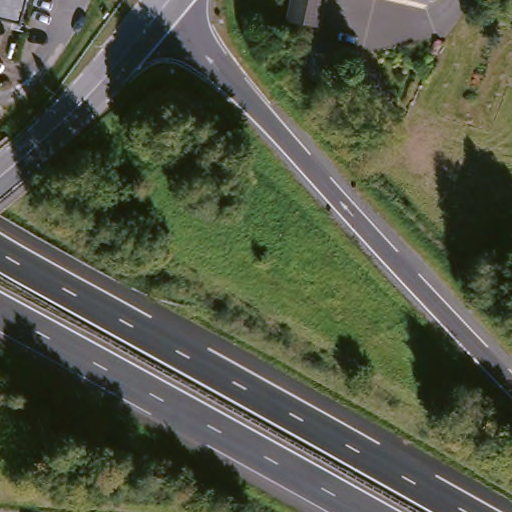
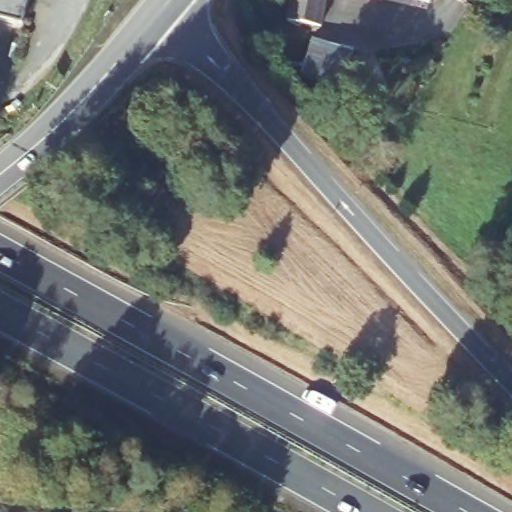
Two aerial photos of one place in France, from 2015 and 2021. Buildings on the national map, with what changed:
unchanged [(0,16),(0,0),(37,0),(31,24),(0,16)]
unchanged [(328,0),(323,27),(288,20),(295,0),(328,0)]
unchanged [(428,0),(431,0),(431,1),(428,0)]

